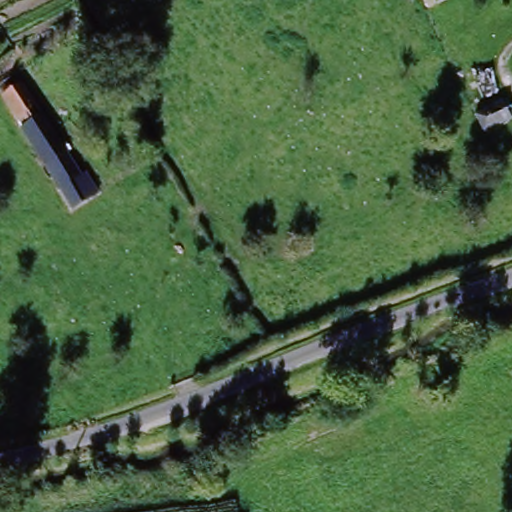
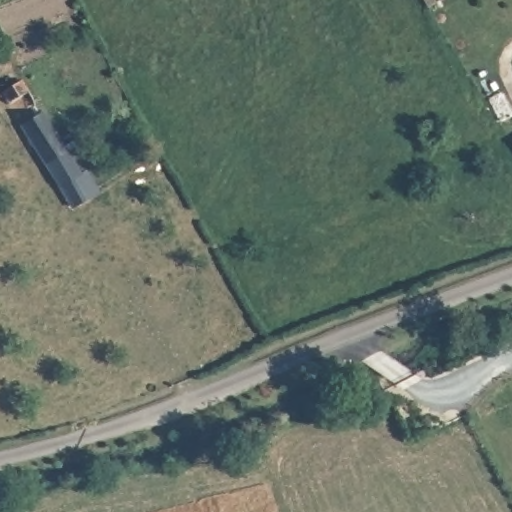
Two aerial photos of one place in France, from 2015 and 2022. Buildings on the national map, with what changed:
unchanged [(0,92),(17,81),(77,176),(81,173),(93,192),(70,207),(0,95),(0,92)]
unchanged [(474,112),(483,107),(502,96),(512,113),(512,116),(494,126),(484,132),(474,112)]

